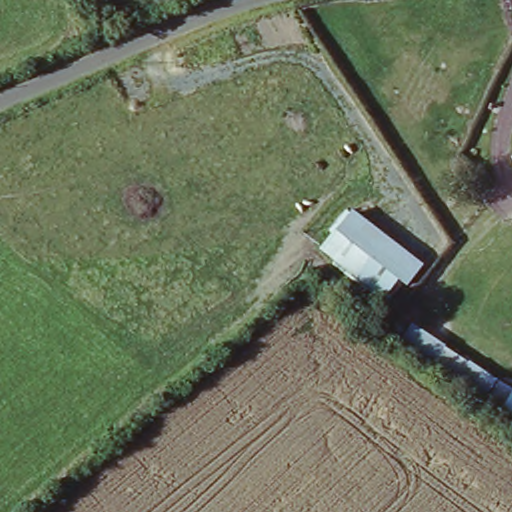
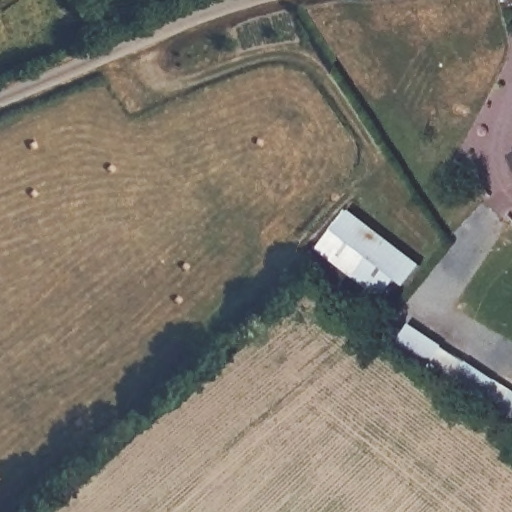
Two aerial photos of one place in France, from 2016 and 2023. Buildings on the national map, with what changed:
unchanged [(345,213),(421,264),(409,284),(400,278),(388,295),(320,250),(345,213)]
unchanged [(512,415),(386,335),(401,315),(512,385),(512,415)]

